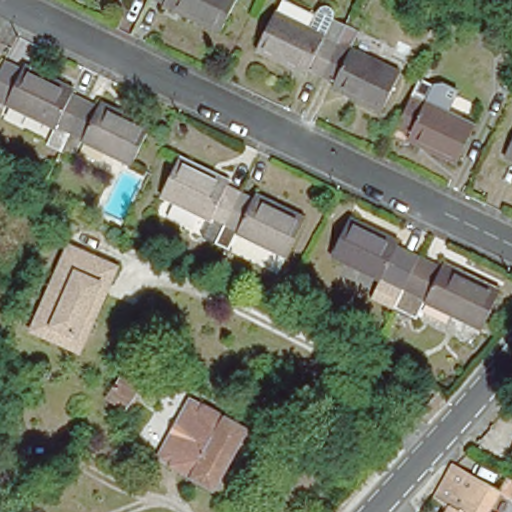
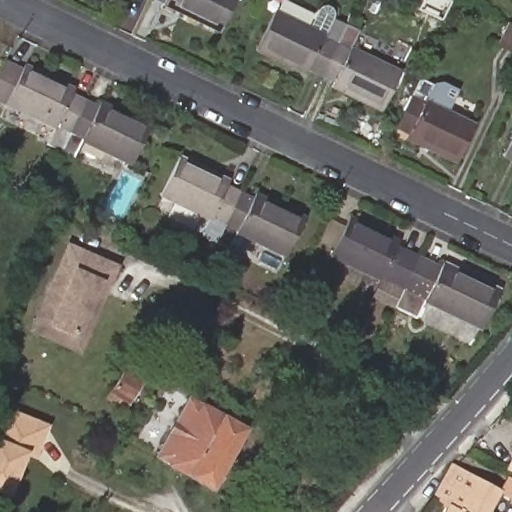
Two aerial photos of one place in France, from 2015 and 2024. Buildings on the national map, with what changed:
unchanged [(153,0),(236,0),(221,32),(153,0)]
unchanged [(309,74),(306,80),(257,55),(276,16),(309,34),(317,17),(319,15),(322,12),(324,11),(327,11),(330,12),(332,15),(334,17),(334,20),(334,24),(347,30),(345,35),(330,65),(322,80),(309,74)]
unchanged [(498,45),(510,22),(512,23),(512,53),(498,45)]
unchanged [(359,36),(351,54),(400,78),(381,116),(332,92),(335,86),(322,80),(330,65),(345,35),(347,30),(359,36)]
unchanged [(441,71),(427,100),(476,125),(457,164),(407,140),(410,134),(396,128),(427,65),(441,71)]
unchanged [(48,145),(56,127),(8,104),(26,66),(75,91),(72,96),(84,102),(61,151),(48,145)]
unchanged [(84,102),(98,109),(100,104),(150,127),(132,164),(83,140),(75,158),(61,151),(84,102)]
unchanged [(504,155),(512,138),(512,159),(504,155)]
unchanged [(202,237),(210,220),(161,196),(179,159),(230,184),(228,189),(240,194),(215,244),(202,237)]
unchanged [(240,194),(254,201),(256,196),(306,220),(287,257),(237,234),(229,250),(215,244),(240,194)]
unchanged [(403,290),(331,255),(349,219),(401,244),(399,249),(419,259),(403,290)]
unchanged [(116,267),(79,352),(31,330),(69,246),(116,267)]
unchanged [(403,290),(419,259),(441,269),(443,265),(500,292),(482,330),(425,302),(417,318),(395,308),(403,290)]
unchanged [(125,410),(109,400),(124,375),(140,385),(125,410)]
unchanged [(214,490),(170,466),(159,460),(190,400),(202,406),(246,430),(214,490)]
new [(51,424),(36,460),(27,456),(11,498),(0,494),(0,419),(5,406),(51,424)]
unchanged [(447,467),(493,493),(482,512),(442,512),(446,506),(430,498),(447,467)]
unchanged [(512,483),(512,502),(494,491),(502,477),(512,483)]

